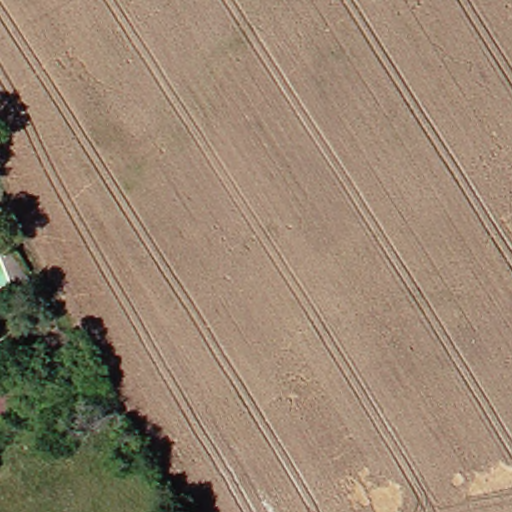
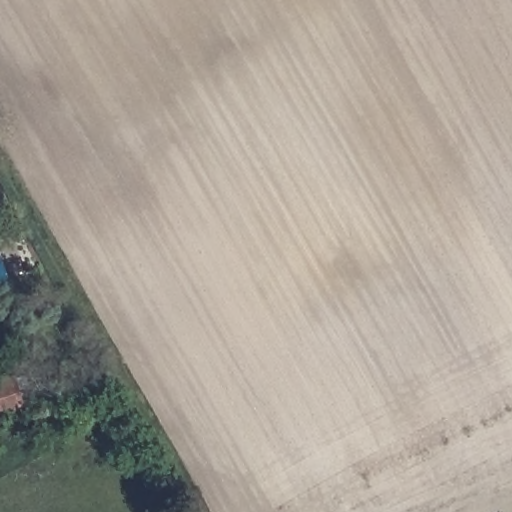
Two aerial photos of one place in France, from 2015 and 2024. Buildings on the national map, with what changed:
unchanged [(22,407),(0,414),(0,384),(14,379),(22,407)]

